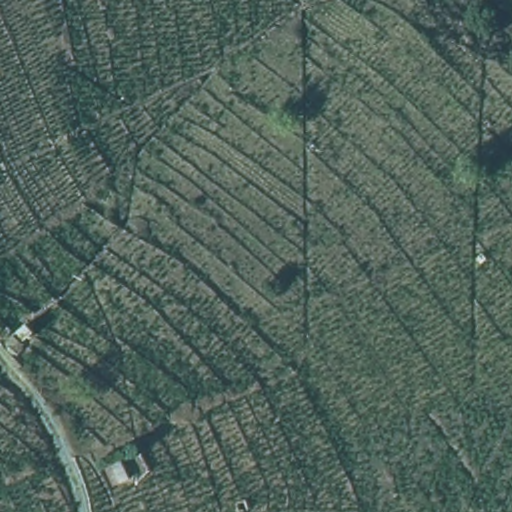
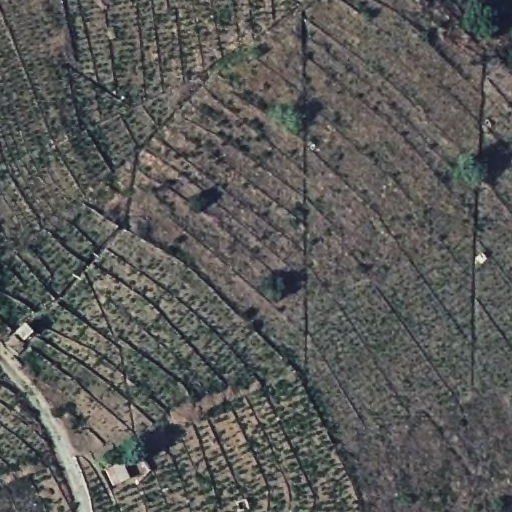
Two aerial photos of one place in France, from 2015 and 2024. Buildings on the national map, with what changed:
unchanged [(155,475),(132,483),(125,462),(148,455),(155,475)]
unchanged [(119,460),(131,490),(113,496),(102,467),(119,460)]

